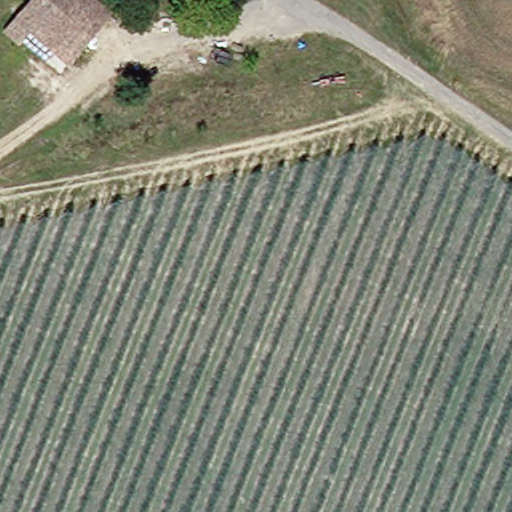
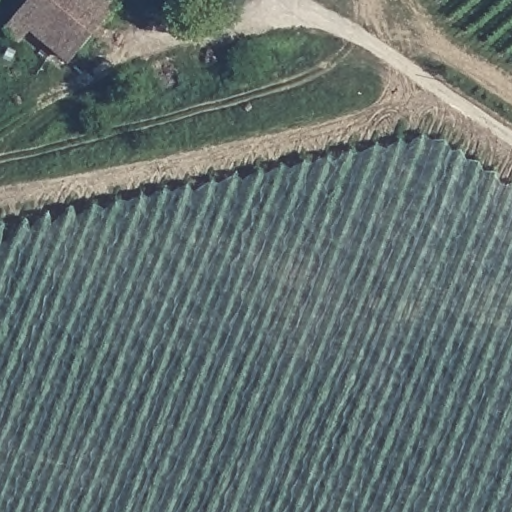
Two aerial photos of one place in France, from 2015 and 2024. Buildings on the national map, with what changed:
unchanged [(114,2),(69,61),(31,30),(20,45),(5,31),(28,0),(111,0),(114,2)]

